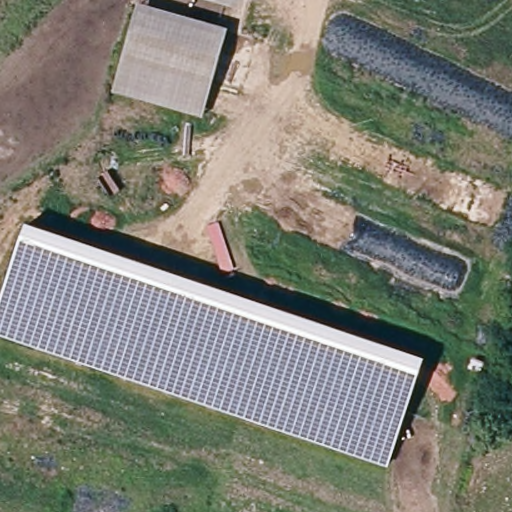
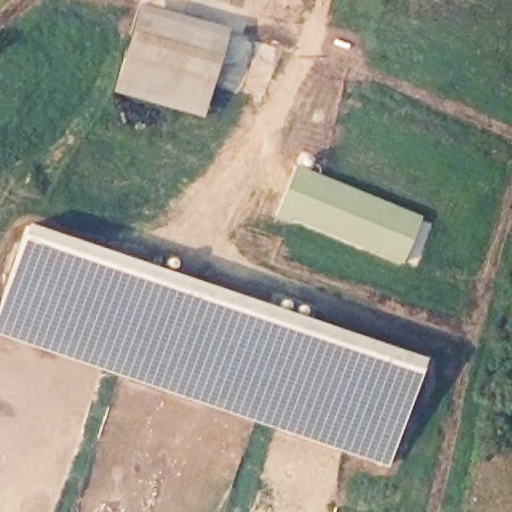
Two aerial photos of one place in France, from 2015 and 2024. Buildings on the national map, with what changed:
unchanged [(191,0),(243,0),(238,16),(191,0)]
unchanged [(224,27),(205,116),(114,92),(134,4),(224,27)]
new [(419,216),(402,263),(290,217),(287,223),(273,218),(295,165),(419,216)]
unchanged [(0,303),(27,224),(425,360),(387,467),(0,335),(0,303)]

